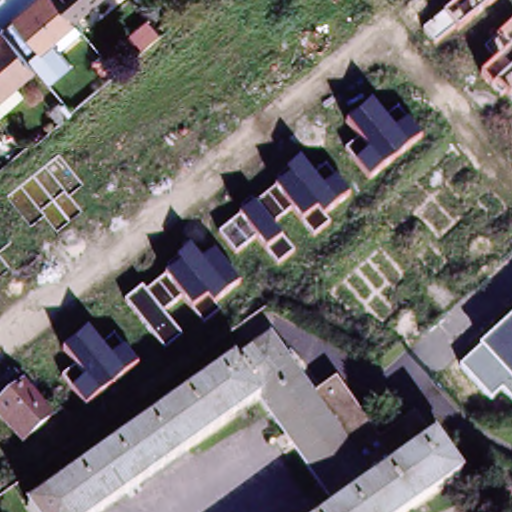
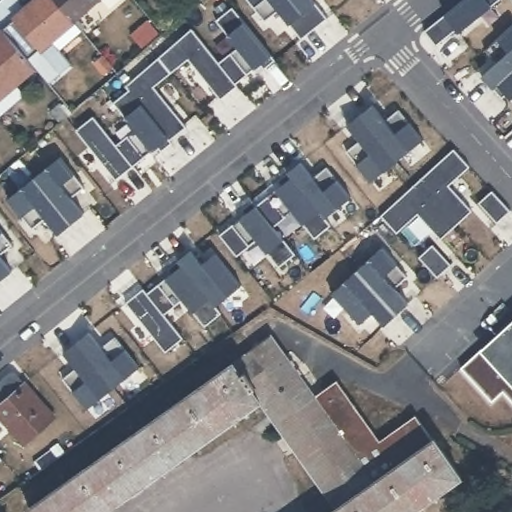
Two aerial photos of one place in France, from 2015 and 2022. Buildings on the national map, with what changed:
unchanged [(1,26),(13,16),(31,0),(57,0),(72,17),(72,19),(80,27),(57,47),(69,61),(46,80),(33,64),(14,81),(23,90),(0,110),(0,27),(1,26)]
unchanged [(72,19),(72,17),(57,0),(94,0),(72,19)]
new [(299,38),(291,22),(288,24),(276,9),(263,20),(248,0),(310,0),(313,5),(324,19),(299,38)]
unchanged [(454,29),(434,45),(422,31),(460,0),(496,0),(457,31),(454,29)]
unchanged [(157,13),(165,6),(178,21),(170,27),(157,13)]
new [(92,116),(115,145),(133,128),(124,117),(112,102),(128,90),(124,86),(190,30),(217,62),(235,46),(227,35),(215,21),(231,9),(243,21),(270,53),(253,67),(251,65),(232,82),(235,85),(217,97),(186,59),(151,87),(183,126),(167,136),(150,150),(114,179),(75,130),(92,116)]
unchanged [(500,96),(481,75),(504,57),(487,47),(498,41),(495,38),(510,23),(512,25),(512,101),(504,93),(500,96)]
unchanged [(152,37),(141,47),(132,37),(143,26),(152,37)]
unchanged [(102,75),(92,64),(100,57),(110,69),(102,75)]
unchanged [(345,152),(360,141),(344,122),(371,102),(385,119),(399,108),(422,138),(368,182),(345,152)]
unchanged [(68,116),(64,120),(58,125),(47,113),(58,104),(68,116)]
demolished [(8,155),(0,145),(0,141),(9,134),(19,146),(8,155)]
new [(439,238),(416,214),(395,233),(379,216),(452,151),(467,167),(446,186),(470,212),(439,238)]
new [(80,187),(67,196),(81,214),(55,233),(41,215),(28,228),(21,216),(8,198),(59,157),(72,174),(80,187)]
unchanged [(325,218),(330,224),(313,237),(289,210),(273,225),(294,252),(276,265),(253,240),(235,254),(217,235),(290,175),(287,172),(299,162),(311,175),(326,165),(350,196),(325,218)]
new [(0,232),(10,245),(0,251),(0,231),(0,232)]
unchanged [(214,305),(219,313),(203,325),(180,300),(163,313),(183,337),(163,352),(124,301),(140,288),(145,292),(177,264),(175,262),(189,249),(201,263),(215,251),(239,282),(214,305)]
new [(342,281),(367,260),(380,249),(394,264),(404,277),(391,287),(406,302),(382,323),(370,310),(358,322),(332,293),(342,281)]
new [(10,270),(0,278),(0,258),(10,270)]
unchanged [(490,401),(459,367),(512,318),(512,401),(502,391),(490,401)]
unchanged [(60,377),(74,367),(63,351),(87,330),(101,347),(113,336),(138,364),(85,408),(60,377)]
unchanged [(271,337),(313,397),(373,482),(335,509),(260,401),(233,364),(271,337)]
unchanged [(105,512),(30,512),(28,510),(233,364),(260,401),(105,512)]
unchanged [(54,412),(23,440),(0,413),(0,379),(7,372),(8,372),(9,372),(10,371),(11,371),(12,371),(13,371),(14,371),(14,372),(15,372),(16,372),(17,373),(18,374),(18,375),(23,380),(24,378),(54,412)]
unchanged [(336,382),(378,440),(413,415),(432,440),(373,482),(313,397),(336,382)]
demolished [(60,415),(68,407),(90,430),(81,438),(60,415)]
unchanged [(433,439),(459,475),(408,512),(331,512),(335,509),(373,482),(432,440),(433,439)]
demolished [(512,512),(485,512),(461,478),(490,457),(512,487),(512,512)]

